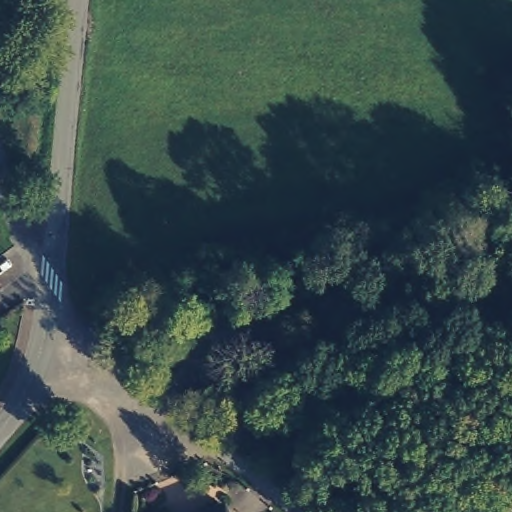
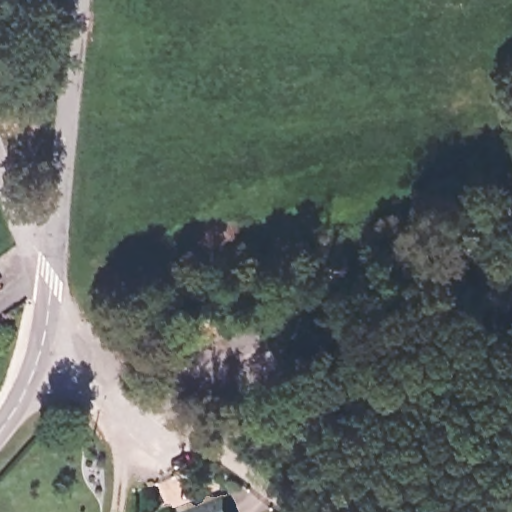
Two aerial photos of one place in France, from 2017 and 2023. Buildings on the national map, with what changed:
unchanged [(220,498),(227,512),(194,512),(220,498)]

